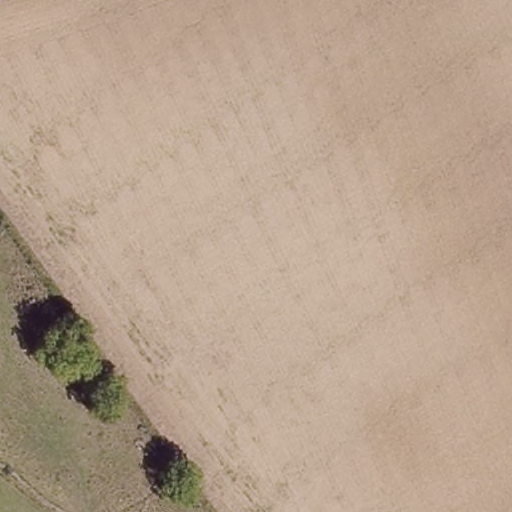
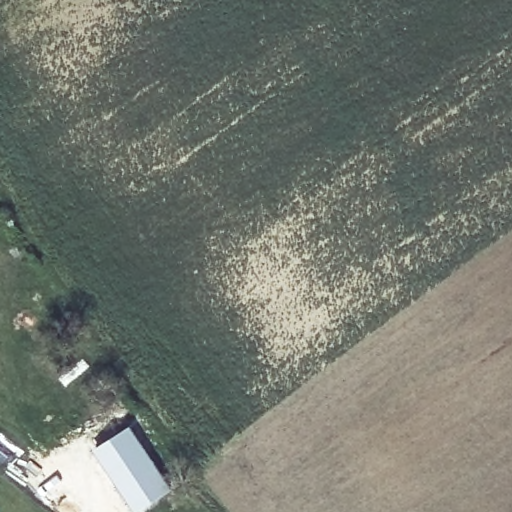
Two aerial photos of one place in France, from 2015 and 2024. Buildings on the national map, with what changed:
new [(132,423),(174,488),(142,512),(133,512),(93,447),(132,423)]

